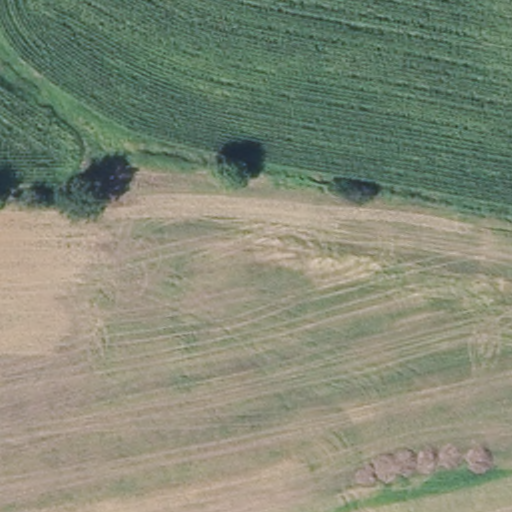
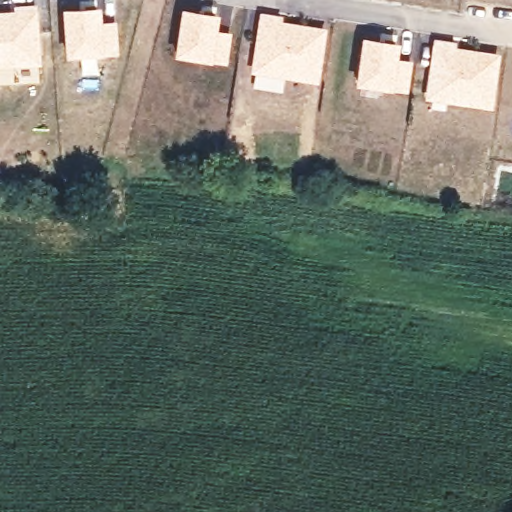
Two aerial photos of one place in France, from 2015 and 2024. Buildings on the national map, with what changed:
new [(35,5),(40,65),(0,68),(0,9),(35,5)]
new [(100,7),(100,21),(115,21),(117,54),(65,57),(60,9),(100,7)]
new [(180,7),(218,14),(216,29),(231,32),(225,64),(172,56),(180,7)]
new [(258,11),(282,16),(281,19),(325,27),(316,82),(282,77),(280,91),(251,86),(254,74),(249,72),(258,11)]
new [(360,36),(398,42),(396,57),(411,61),(406,92),(353,84),(360,36)]
new [(432,38),(456,42),(456,46),(500,54),(491,110),(422,99),(432,38)]

